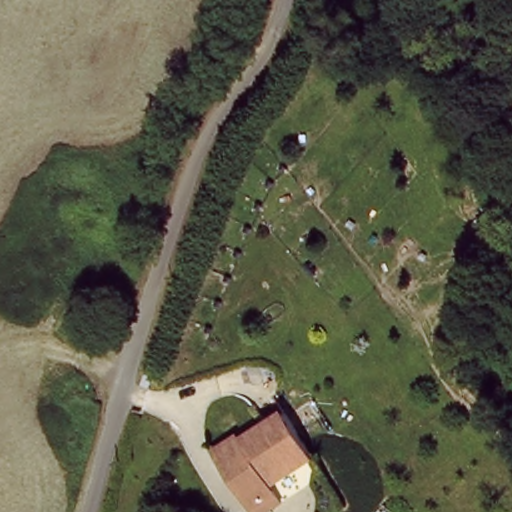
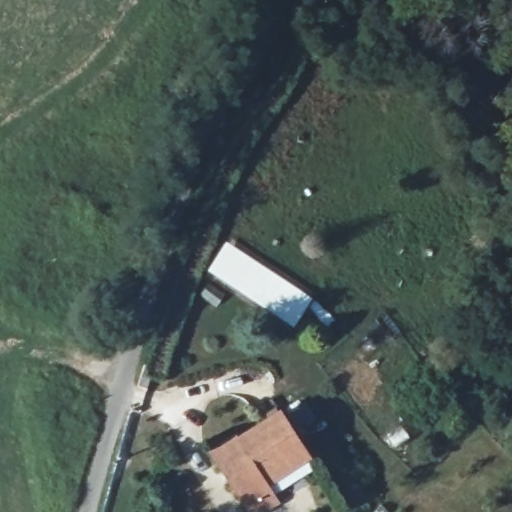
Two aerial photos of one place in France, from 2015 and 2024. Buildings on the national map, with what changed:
new [(227,243),(311,300),(293,327),(208,270),(227,243)]
unchanged [(266,481),(270,498),(243,506),(222,435),(251,427),(252,432),(300,419),(310,460),(313,469),(266,481)]

